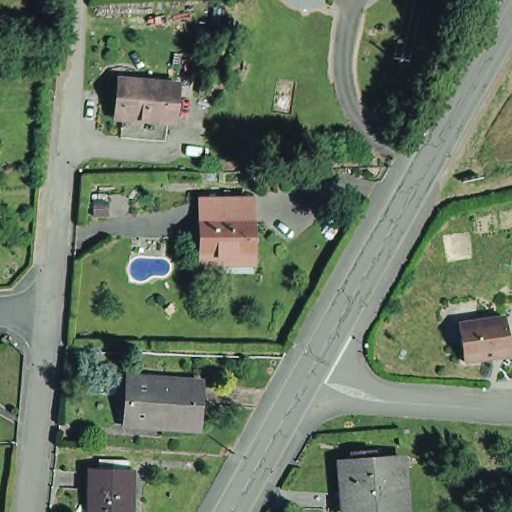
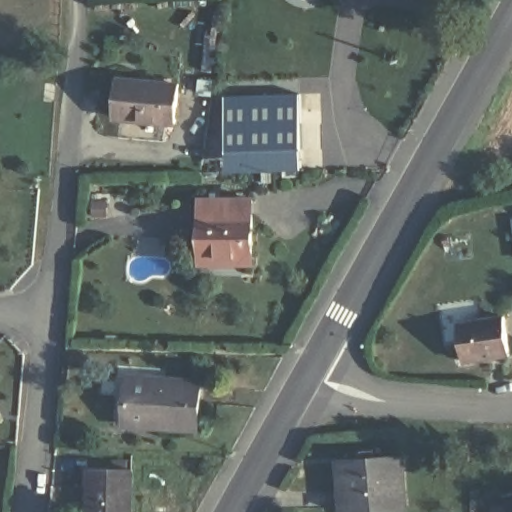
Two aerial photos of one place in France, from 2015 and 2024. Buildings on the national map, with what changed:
new [(446,4),(438,0),(448,0),(446,4)]
unchanged [(115,111),(119,73),(175,79),(171,116),(115,111)]
new [(300,94),(305,173),(231,174),(228,97),(300,94)]
unchanged [(202,254),(203,204),(256,205),(255,254),(255,263),(255,271),(201,268),(201,260),(202,254)]
unchanged [(458,323),(503,317),(506,354),(463,359),(458,323)]
unchanged [(196,427),(148,422),(121,419),(127,372),(202,381),(197,421),(196,427)]
unchanged [(402,511),(340,512),(338,466),(400,465),(402,511)]
unchanged [(135,470),(132,512),(91,512),(94,467),(135,470)]

